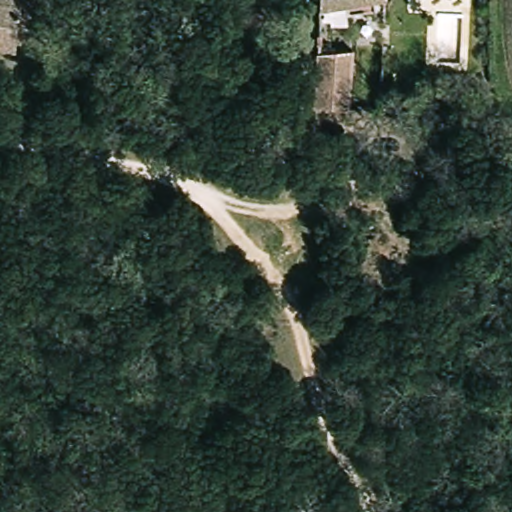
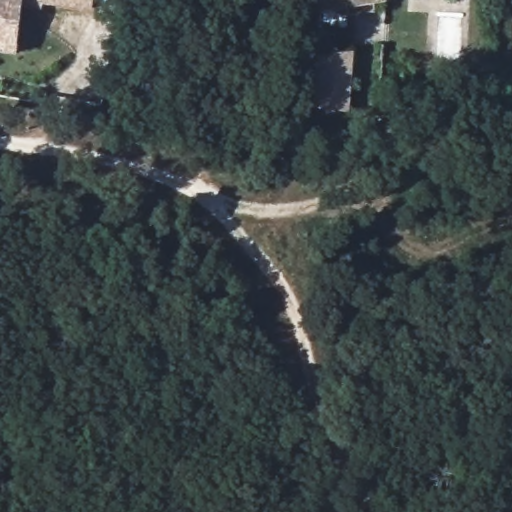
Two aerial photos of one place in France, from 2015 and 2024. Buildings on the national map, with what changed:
demolished [(0,51),(0,0),(19,0),(12,53),(0,51)]
new [(91,10),(41,4),(41,10),(21,8),(16,54),(0,52),(0,0),(93,0),(91,10)]
unchanged [(348,8),(348,2),(311,3),(311,0),(381,0),(380,7),(348,8)]
unchanged [(353,55),(350,109),(317,104),(318,55),(353,55)]

